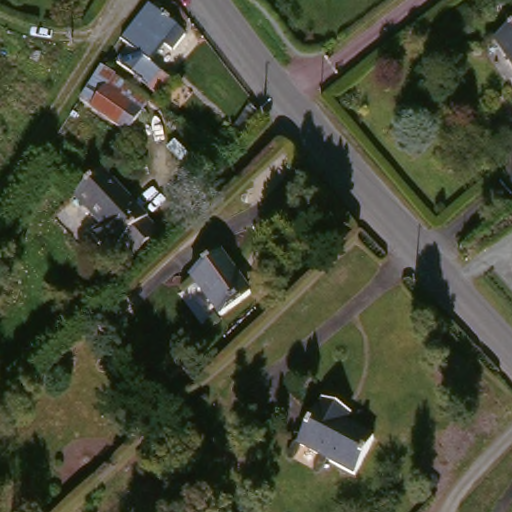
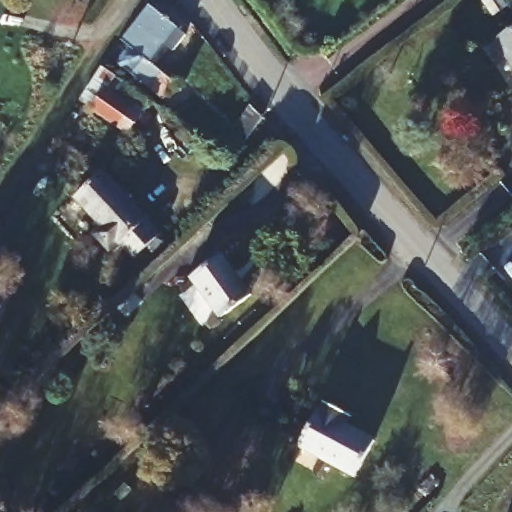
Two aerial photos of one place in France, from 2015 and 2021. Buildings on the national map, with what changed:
unchanged [(176,17),(152,55),(163,62),(151,79),(121,58),(129,42),(124,37),(148,0),(149,0),(176,17)]
unchanged [(512,24),(512,60),(496,36),(512,24)]
unchanged [(133,130),(84,98),(97,77),(109,57),(116,62),(113,67),(121,73),(112,87),(147,110),(133,130)]
unchanged [(219,148),(233,133),(229,131),(248,107),(261,119),(243,141),(230,157),(219,148)]
unchanged [(148,216),(147,217),(160,231),(137,253),(121,236),(111,244),(96,229),(104,221),(78,193),(104,169),(148,216)]
unchanged [(248,290),(219,310),(193,270),(222,250),(248,290)]
unchanged [(319,411),(326,400),(349,413),(343,423),(371,437),(353,470),(299,442),(315,408),(319,411)]

